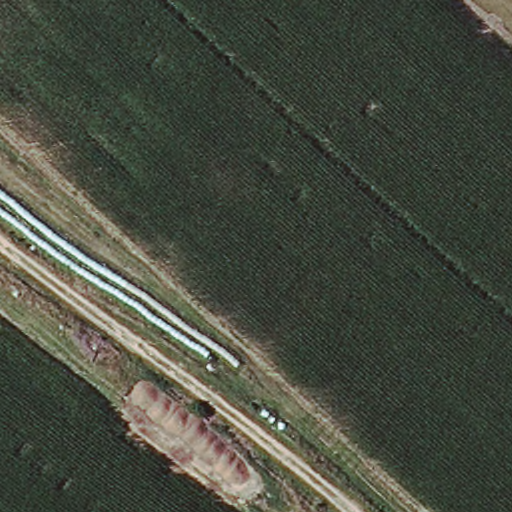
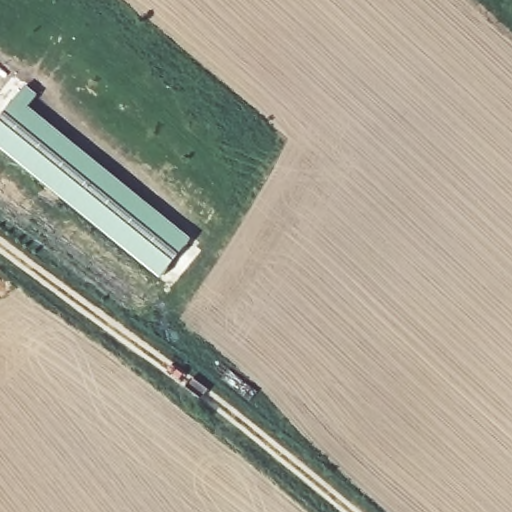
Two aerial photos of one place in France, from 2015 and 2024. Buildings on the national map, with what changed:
new [(158,278),(0,149),(0,116),(24,87),(35,95),(26,108),(189,239),(158,278)]

